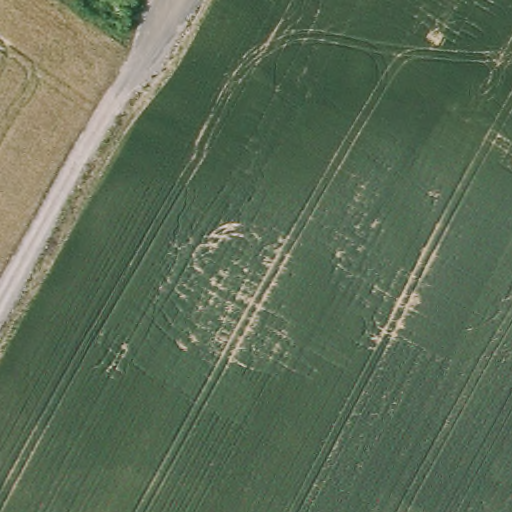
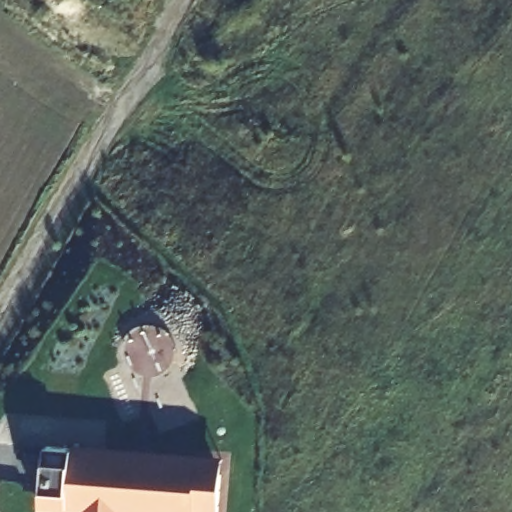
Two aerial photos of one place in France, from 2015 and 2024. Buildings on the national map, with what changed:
new [(224,512),(111,512),(43,507),(50,438),(228,454),(224,512)]

